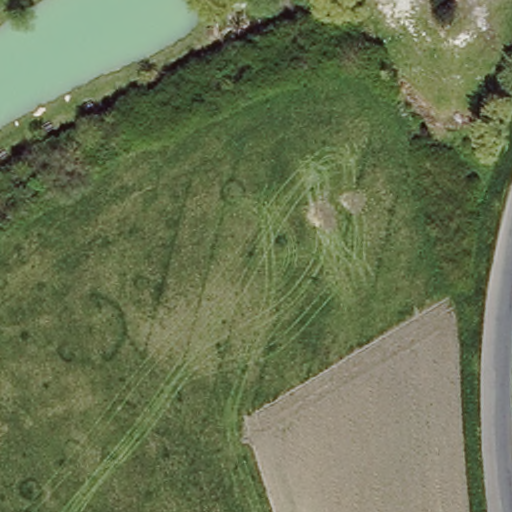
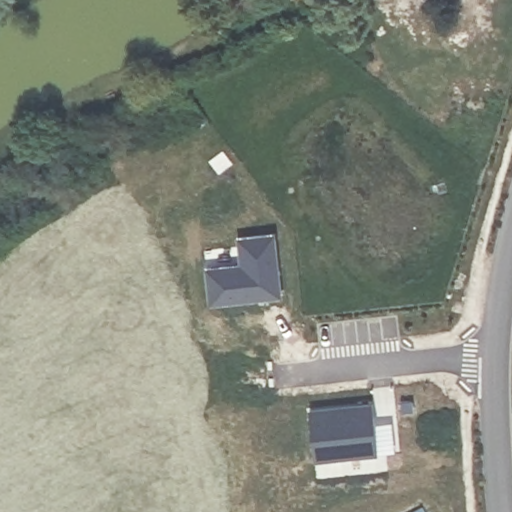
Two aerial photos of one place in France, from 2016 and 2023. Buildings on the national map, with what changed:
new [(245,259),(242,232),(277,229),(285,291),(267,293),(267,290),(260,291),(260,293),(214,298),(210,263),(245,259)]
new [(376,399),(381,449),(318,456),(313,406),(376,399)]
new [(425,512),(419,512),(424,510),(425,512)]

